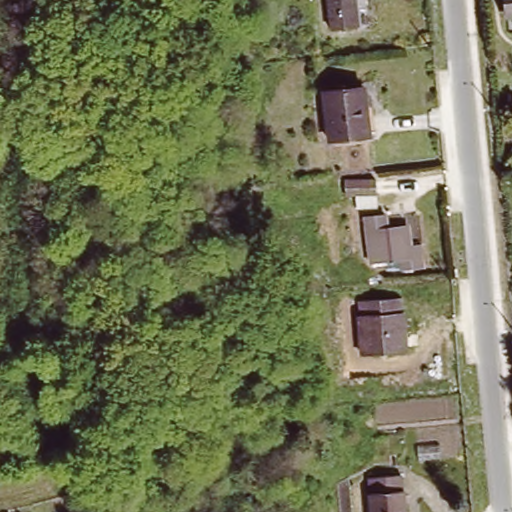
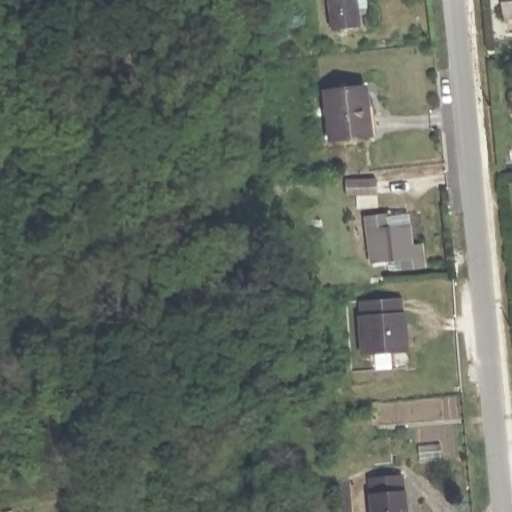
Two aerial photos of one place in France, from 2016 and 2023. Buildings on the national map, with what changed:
unchanged [(364,4),(351,6),(353,23),(331,26),(327,0),(363,0),(364,4)]
unchanged [(512,22),(507,23),(503,0),(512,0),(512,22)]
unchanged [(369,87),(372,134),(334,136),(331,90),(369,87)]
unchanged [(424,249),(433,248),(435,272),(414,274),(413,257),(404,257),(384,257),(380,216),(399,214),(401,229),(421,227),(424,249)]
unchanged [(404,300),(409,351),(371,355),(366,304),(404,300)]
unchanged [(408,512),(374,512),(371,481),(405,478),(408,512)]

